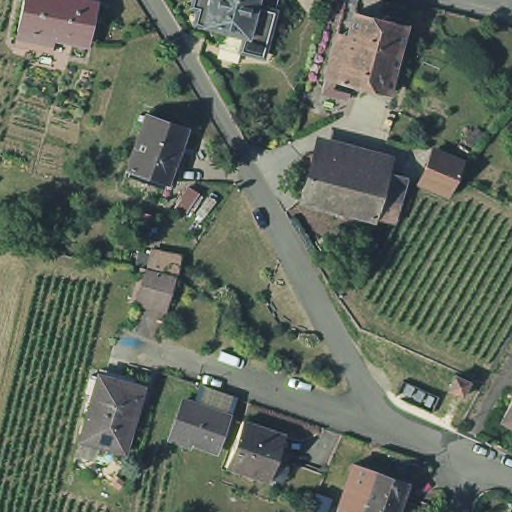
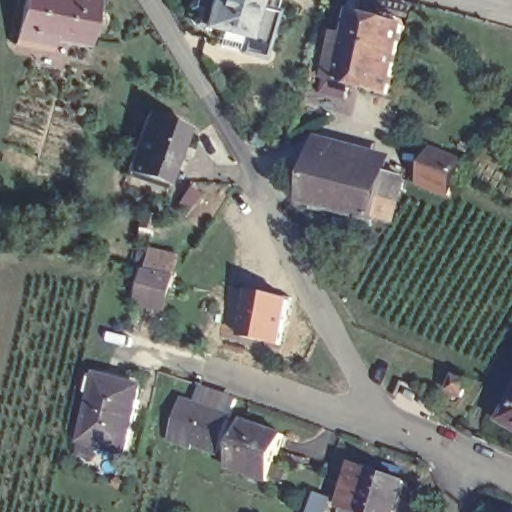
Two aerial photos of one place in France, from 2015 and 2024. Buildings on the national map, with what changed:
unchanged [(82,45),(45,38),(43,46),(10,41),(16,2),(17,0),(65,0),(90,4),(82,45)]
unchanged [(219,29),(205,26),(206,23),(197,21),(201,8),(193,5),(194,0),(279,0),(265,58),(241,52),(240,56),(214,49),(219,29)]
unchanged [(321,98),(325,84),(324,83),(336,40),(348,43),(354,19),(382,26),(390,21),(400,24),(400,29),(400,33),(402,34),(384,100),(350,90),(345,105),(321,98)]
unchanged [(125,172),(142,116),(181,129),(161,184),(125,172)]
unchanged [(457,177),(451,195),(421,189),(428,153),(463,160),(457,177)]
unchanged [(392,227),(374,222),(373,225),(301,205),(315,157),(368,172),(370,172),(387,177),(386,178),(403,183),(392,227)]
unchanged [(186,190),(198,196),(185,218),(173,211),(186,190)]
unchanged [(147,231),(138,229),(142,216),(151,219),(147,231)]
unchanged [(147,265),(151,248),(180,255),(176,272),(147,265)]
unchanged [(175,274),(167,305),(140,299),(146,267),(175,274)]
new [(280,344),(240,336),(250,290),(290,298),(280,344)]
unchanged [(125,454),(80,442),(98,378),(141,390),(125,454)]
unchanged [(455,378),(470,384),(463,400),(448,393),(455,378)]
unchanged [(218,451),(190,441),(172,434),(183,400),(199,405),(230,416),(218,451)]
unchanged [(512,407),(512,441),(497,432),(512,407)]
unchanged [(227,463),(242,416),(285,431),(270,477),(227,463)]
unchanged [(336,498),(349,459),(370,466),(368,467),(403,477),(392,512),(365,512),(355,509),(354,512),(301,512),(312,488),(336,498)]

